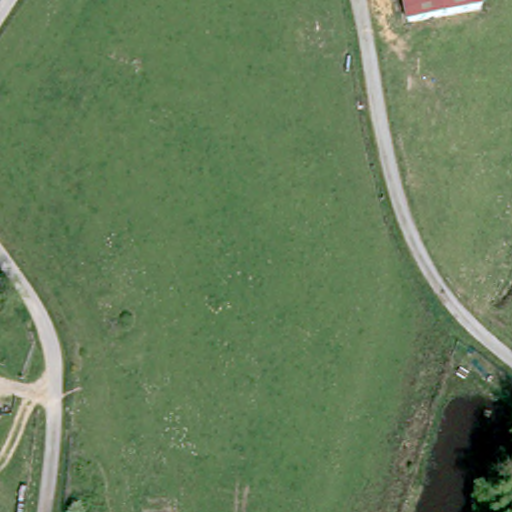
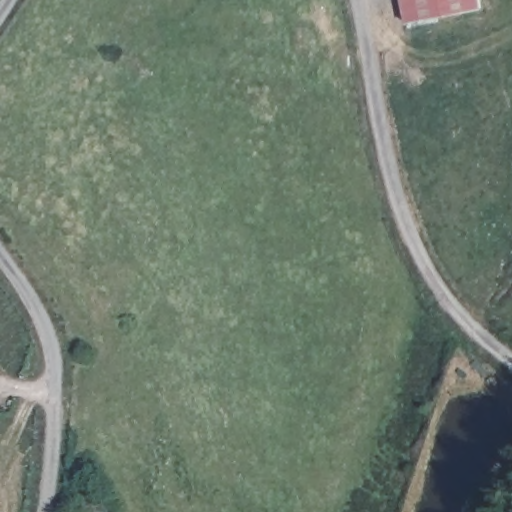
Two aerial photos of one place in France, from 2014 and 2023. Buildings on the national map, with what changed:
unchanged [(477,8),(426,18),(405,22),(401,0),(475,0),(477,8)]

